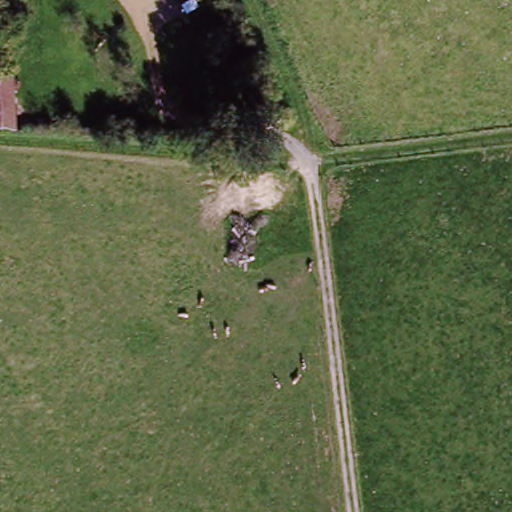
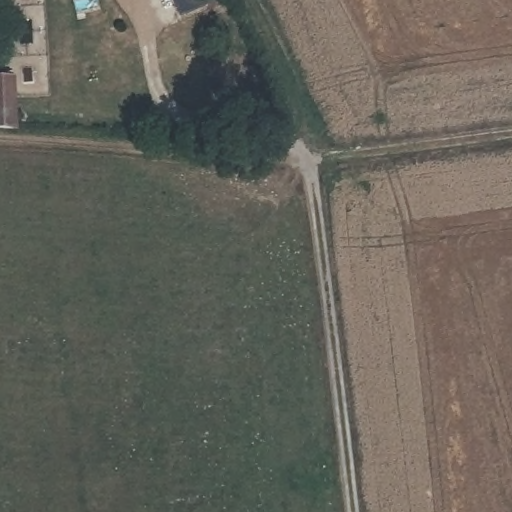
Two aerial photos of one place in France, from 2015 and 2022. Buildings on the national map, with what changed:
unchanged [(0,74),(8,71),(29,132),(0,130),(0,74)]

